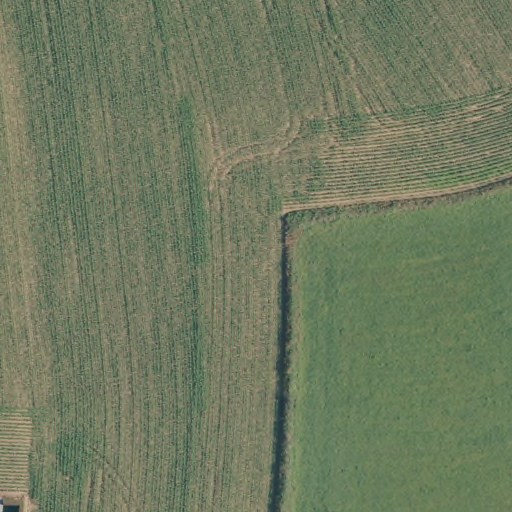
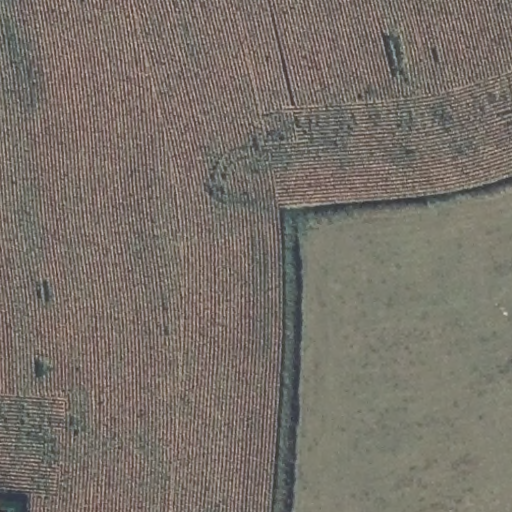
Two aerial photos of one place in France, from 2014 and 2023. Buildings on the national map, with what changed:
[]

